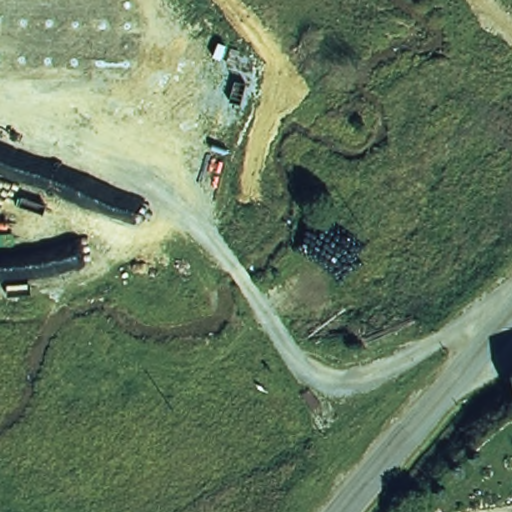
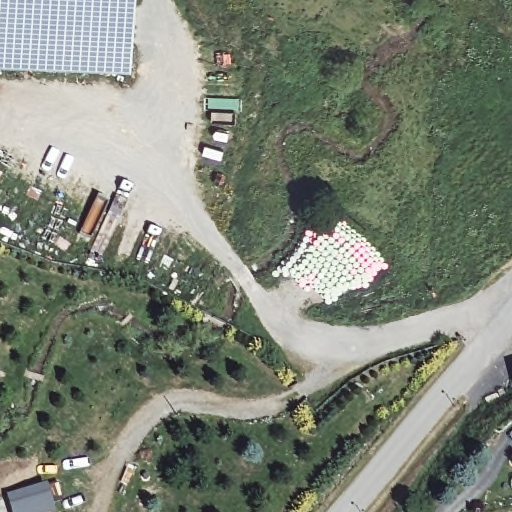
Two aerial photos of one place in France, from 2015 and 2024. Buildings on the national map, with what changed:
new [(127,76),(0,70),(0,0),(131,0),(127,76)]

